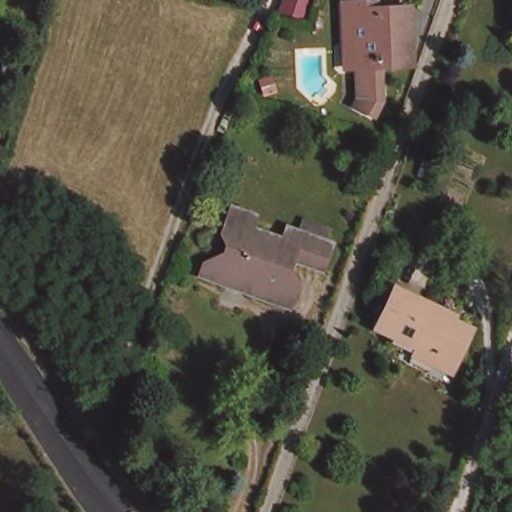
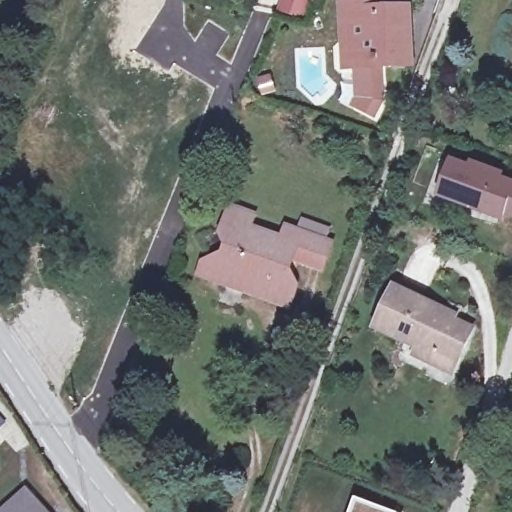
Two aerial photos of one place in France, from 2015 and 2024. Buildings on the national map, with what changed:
unchanged [(408,7),(410,62),(379,63),(379,98),(371,112),(353,101),(356,94),(355,64),(344,64),(343,38),(341,0),(378,0),(378,8),(408,7)]
new [(468,165),(494,174),(492,178),(512,185),(512,209),(511,213),(498,209),(496,215),(437,194),(448,163),(467,169),(468,165)]
unchanged [(267,304),(199,278),(203,262),(213,260),(225,263),(229,250),(224,235),(223,231),(230,210),(255,220),(251,232),(281,243),(286,229),(329,245),(319,272),(282,260),(279,272),(290,275),(293,288),(289,301),(286,311),(267,304)]
unchanged [(409,342),(372,325),(391,287),(434,309),(434,314),(464,330),(444,371),(423,360),(404,352),(409,342)]
new [(4,422),(0,426),(0,417),(4,422)]
new [(27,488),(49,512),(1,512),(27,488)]
new [(391,512),(352,512),(357,499),(391,512)]

